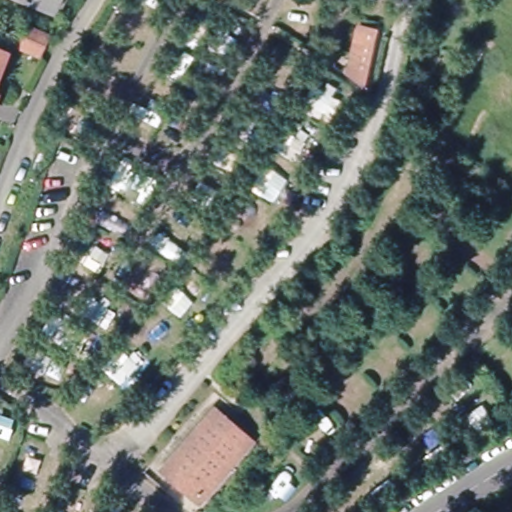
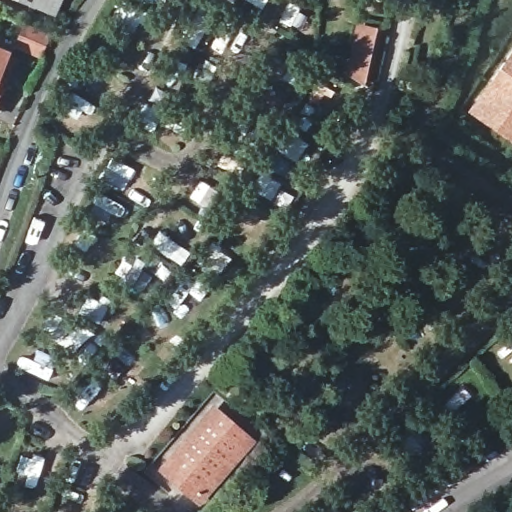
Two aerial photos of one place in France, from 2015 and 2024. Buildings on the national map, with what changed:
unchanged [(13,0),(54,0),(47,15),(13,0)]
unchanged [(377,30),(366,76),(352,72),(363,27),(377,30)]
unchanged [(37,59),(14,49),(23,29),(45,39),(37,59)]
new [(512,45),(512,143),(466,111),(512,45)]
unchanged [(2,56),(0,61),(0,55),(2,56)]
unchanged [(1,67),(0,70),(0,67),(1,67)]
unchanged [(254,447),(200,510),(154,474),(212,406),(254,447)]

